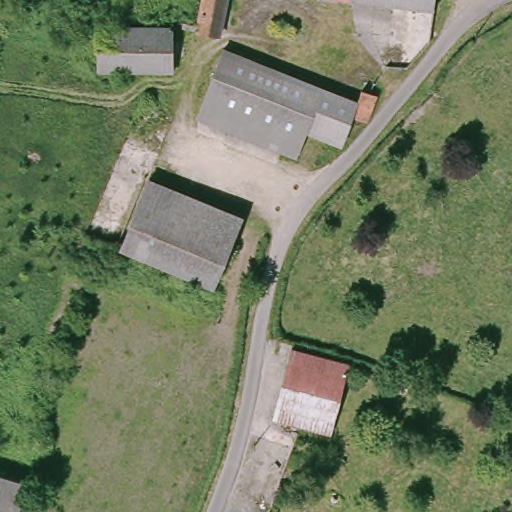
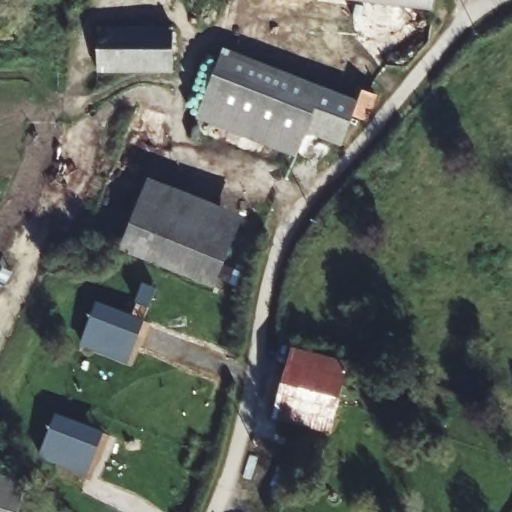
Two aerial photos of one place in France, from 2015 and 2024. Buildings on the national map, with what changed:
demolished [(226,0),(220,31),(200,27),(205,0),(226,0)]
unchanged [(331,0),(440,0),(438,17),(331,0)]
unchanged [(95,49),(95,27),(176,30),(175,49),(175,72),(95,71),(95,51),(95,49)]
unchanged [(342,152),(306,137),(297,157),(200,114),(227,47),(361,105),(366,93),(375,96),(372,101),(378,104),(367,129),(354,123),(342,152)]
unchanged [(152,182),(243,224),(212,292),(120,253),(152,182)]
new [(146,318),(129,363),(80,345),(97,300),(146,318)]
unchanged [(353,366),(332,436),(275,418),(297,349),(353,366)]
new [(39,456),(56,412),(105,431),(87,475),(39,456)]
unchanged [(23,512),(0,512),(0,488),(28,498),(23,512)]

